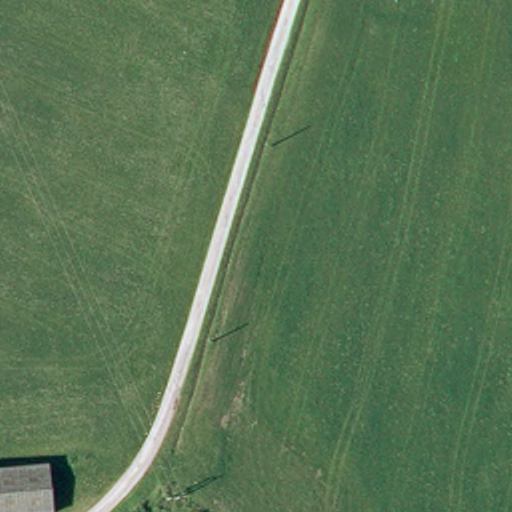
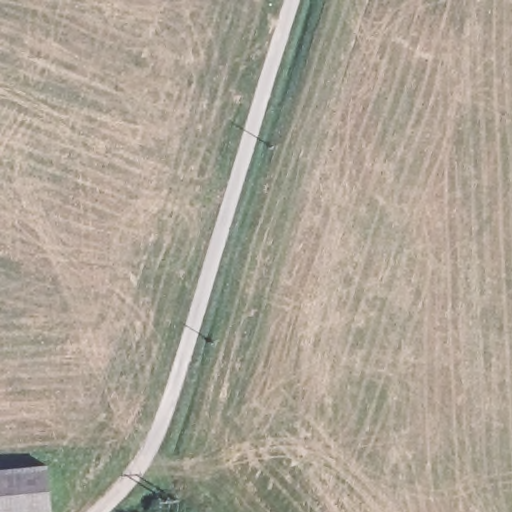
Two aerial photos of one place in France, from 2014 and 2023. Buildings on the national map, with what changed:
unchanged [(47,508),(20,512),(0,512),(0,465),(41,460),(47,508)]

